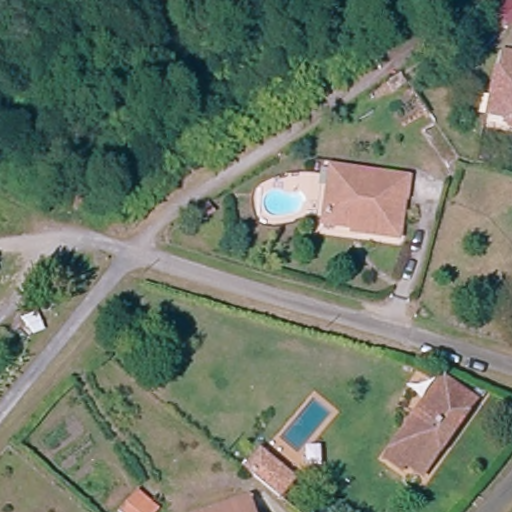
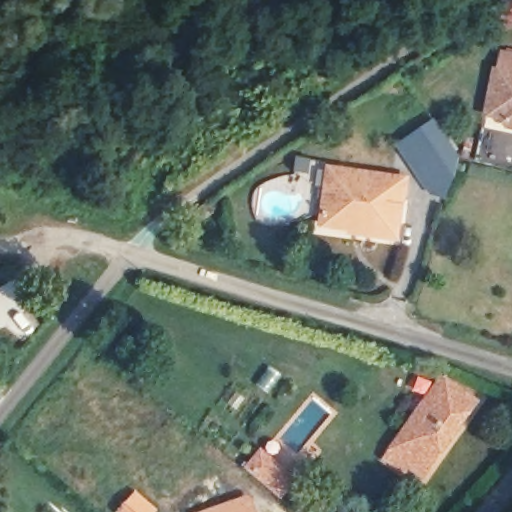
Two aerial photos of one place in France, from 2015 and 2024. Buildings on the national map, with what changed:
unchanged [(502,4),(508,0),(512,0),(512,18),(502,4)]
unchanged [(496,93),(502,53),(512,54),(512,133),(510,133),(503,120),(492,119),(496,93)]
new [(434,118),(461,156),(446,201),(427,194),(393,145),(434,118)]
unchanged [(392,242),(352,234),(353,231),(315,225),(320,193),(324,167),(335,169),(402,179),(392,242)]
demolished [(18,346),(3,329),(22,312),(37,325),(18,346)]
unchanged [(454,381),(480,399),(428,473),(410,461),(418,450),(403,439),(446,378),(454,381)]
unchanged [(262,445),(295,472),(280,490),(247,463),(262,445)]
unchanged [(407,489),(390,478),(399,465),(415,476),(407,489)]
unchanged [(151,510),(150,512),(122,512),(115,507),(129,491),(151,510)]
unchanged [(240,497),(247,512),(201,512),(240,497)]

